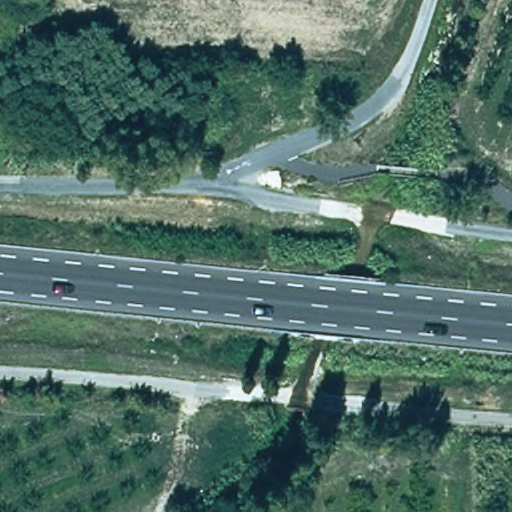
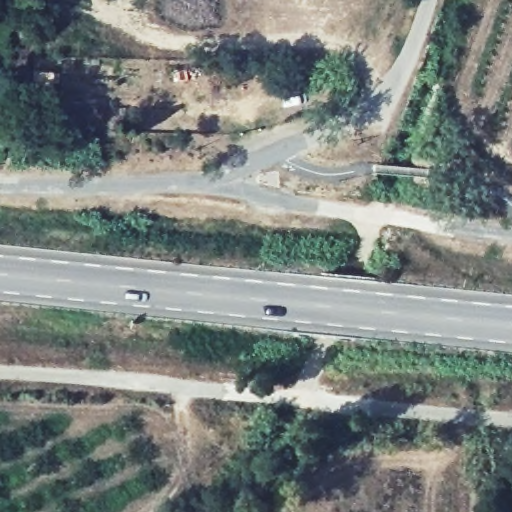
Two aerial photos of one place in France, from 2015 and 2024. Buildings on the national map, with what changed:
[]

